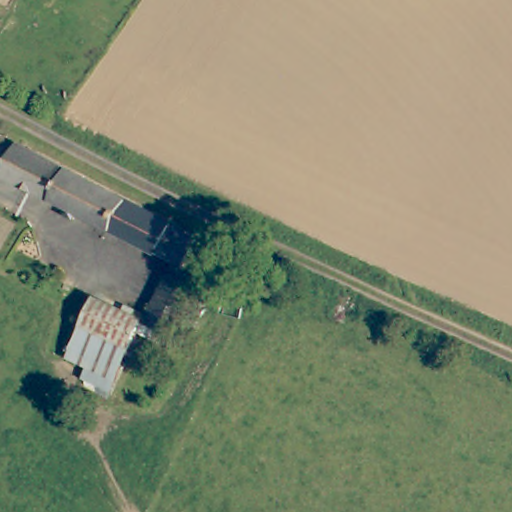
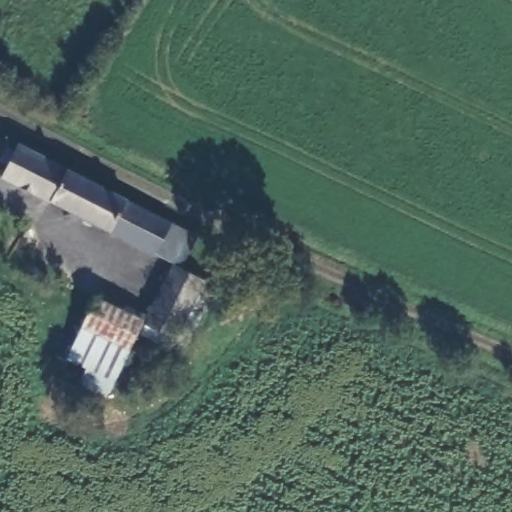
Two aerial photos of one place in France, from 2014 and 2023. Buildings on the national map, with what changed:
unchanged [(173,229),(185,235),(174,256),(161,250),(159,253),(9,175),(24,146),(175,225),(173,229)]
unchanged [(177,337),(149,322),(178,267),(206,282),(177,337)]
unchanged [(96,298),(140,320),(126,348),(82,326),(96,298)]
unchanged [(118,367),(72,346),(82,326),(126,348),(118,367)]

